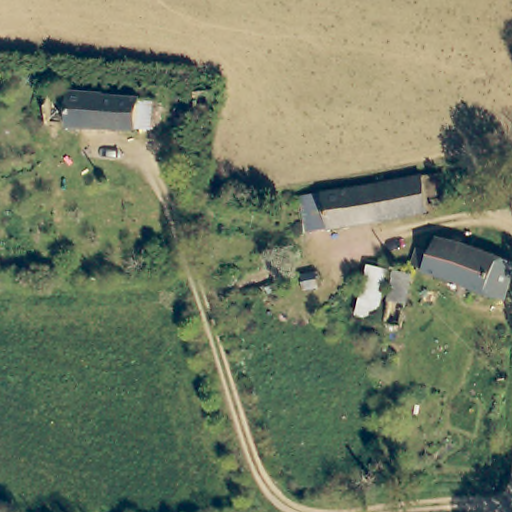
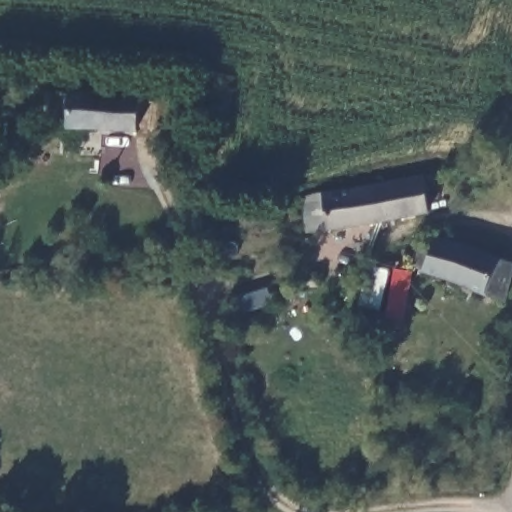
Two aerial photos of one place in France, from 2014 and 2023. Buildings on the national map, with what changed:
unchanged [(198,94),(198,83),(220,82),(219,94),(210,95),(198,94)]
unchanged [(133,95),(144,95),(143,131),(70,128),(72,91),(133,95)]
unchanged [(318,233),(312,196),(335,192),(362,187),(431,173),(436,205),(437,209),(341,228),(329,230),(318,233)]
unchanged [(502,301),(419,276),(422,264),(426,248),(428,237),(431,237),(491,254),(509,262),(502,301)]
unchanged [(384,265),(389,264),(378,314),(358,310),(360,300),(369,263),(384,265)]
unchanged [(314,286),(297,288),(295,271),(312,268),(314,286)]
unchanged [(411,270),(402,324),(385,322),(394,268),(411,270)]

